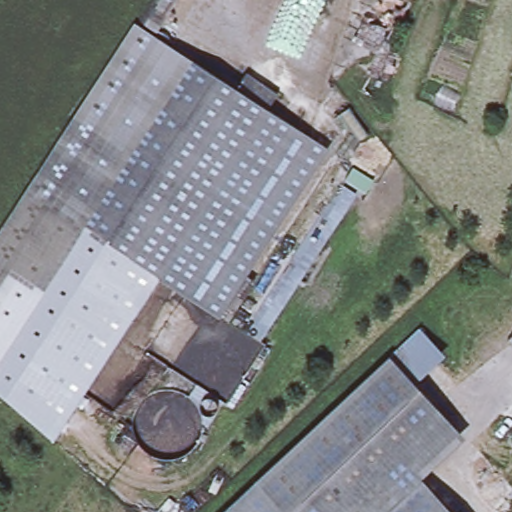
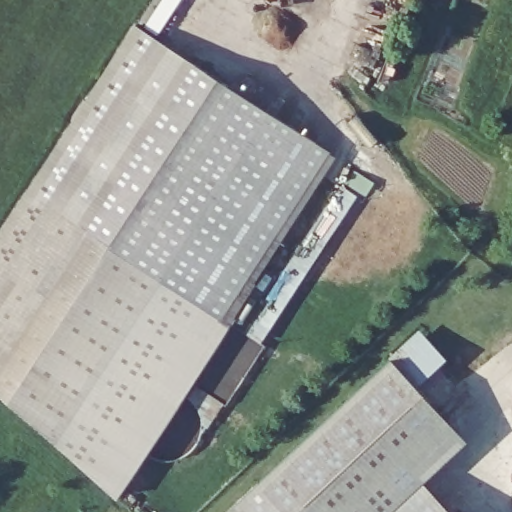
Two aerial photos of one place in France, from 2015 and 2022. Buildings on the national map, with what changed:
unchanged [(195,61),(87,229),(27,190),(137,22),(195,61)]
unchanged [(270,109),(160,277),(87,229),(195,61),(270,109)]
unchanged [(309,135),(329,149),(220,316),(160,277),(270,109),(309,135)]
unchanged [(342,185),(359,195),(262,340),(247,332),(342,185)]
unchanged [(0,393),(0,233),(27,190),(87,229),(160,277),(55,442),(0,393)]
new [(220,316),(232,322),(117,498),(55,442),(160,277),(220,316)]
unchanged [(407,467),(359,512),(284,512),(257,483),(390,359),(413,338),(432,360),(410,381),(452,426),(407,467)]
unchanged [(407,467),(450,512),(359,512),(407,467)]
unchanged [(257,483),(284,512),(226,512),(257,483)]

